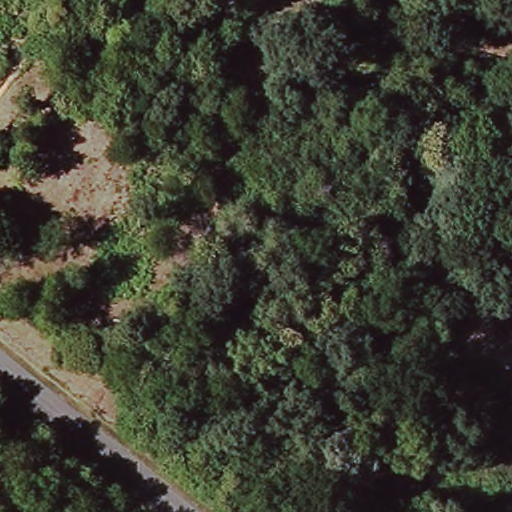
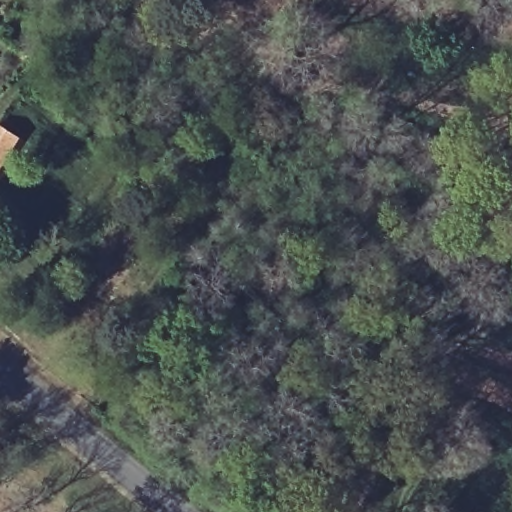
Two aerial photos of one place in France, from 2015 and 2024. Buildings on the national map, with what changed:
new [(0,123),(21,136),(0,170),(0,123)]

